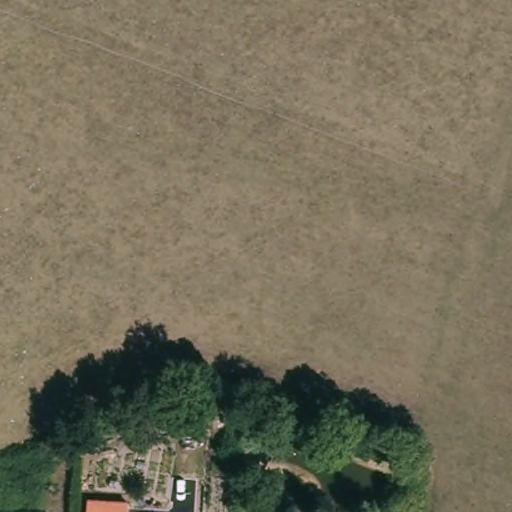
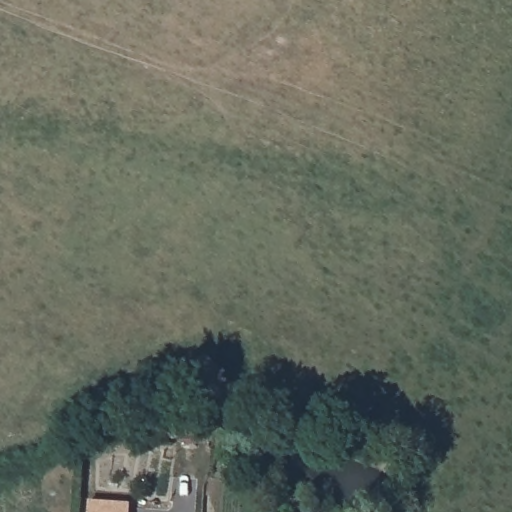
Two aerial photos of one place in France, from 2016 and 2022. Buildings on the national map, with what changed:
unchanged [(126,504),(125,512),(83,512),(84,501),(126,504)]

